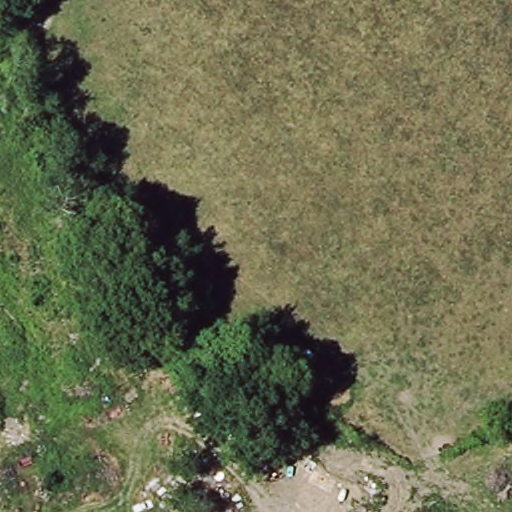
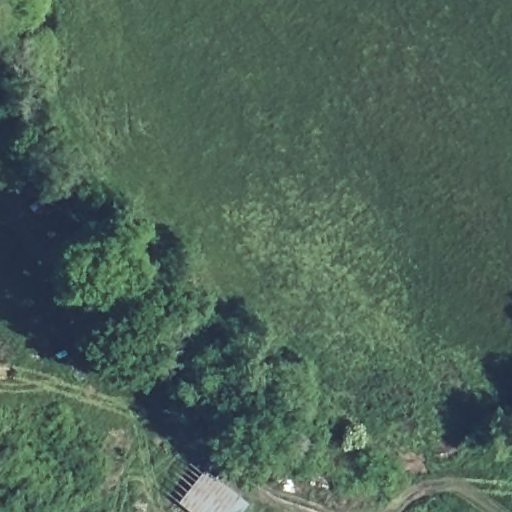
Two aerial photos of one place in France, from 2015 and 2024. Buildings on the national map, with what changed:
new [(203,469),(250,502),(242,512),(192,512),(178,501),(203,469)]

